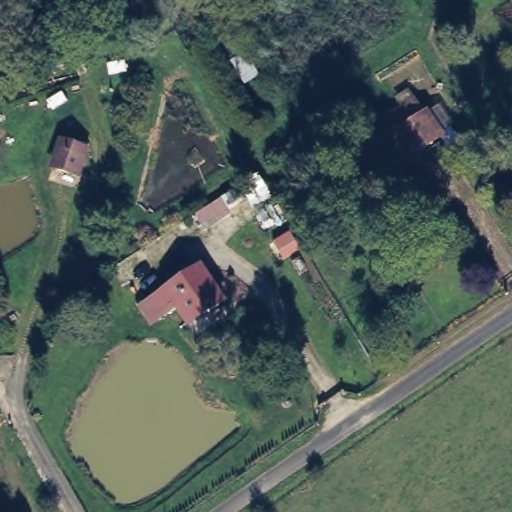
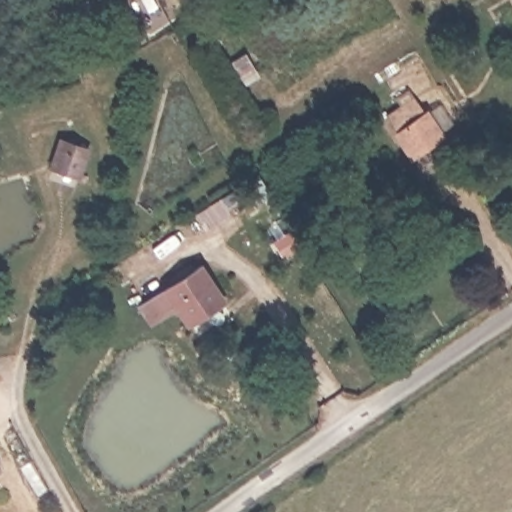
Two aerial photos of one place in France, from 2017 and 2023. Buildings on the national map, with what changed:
unchanged [(416,98),(439,131),(412,150),(389,116),(416,98)]
unchanged [(85,151),(78,177),(52,170),(58,145),(85,151)]
unchanged [(205,268),(230,301),(195,327),(170,293),(205,268)]
unchanged [(2,467),(0,469),(0,464),(2,467)]

